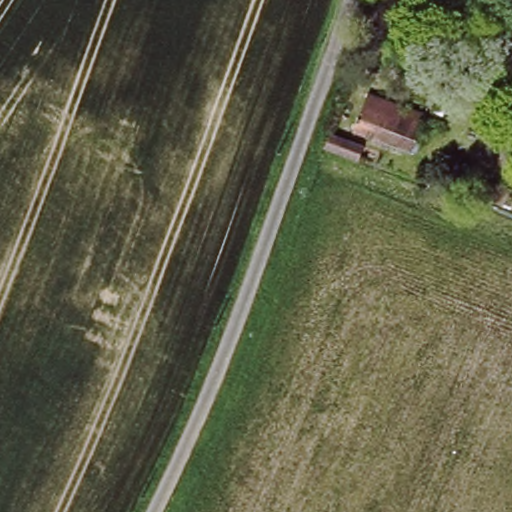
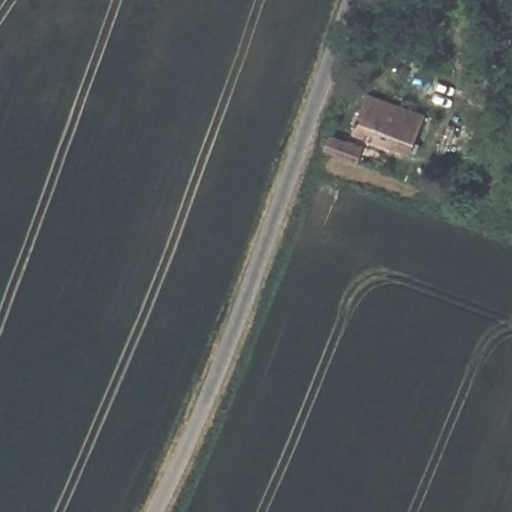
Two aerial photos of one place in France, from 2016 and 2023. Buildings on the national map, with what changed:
unchanged [(421,122),(411,154),(356,132),(367,100),(421,122)]
unchanged [(367,146),(361,165),(335,155),(343,136),(367,146)]

